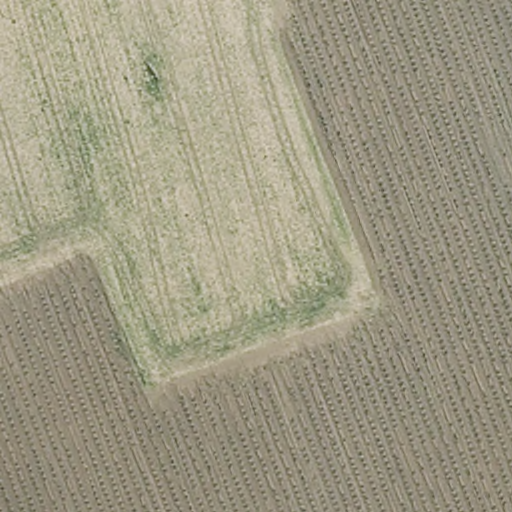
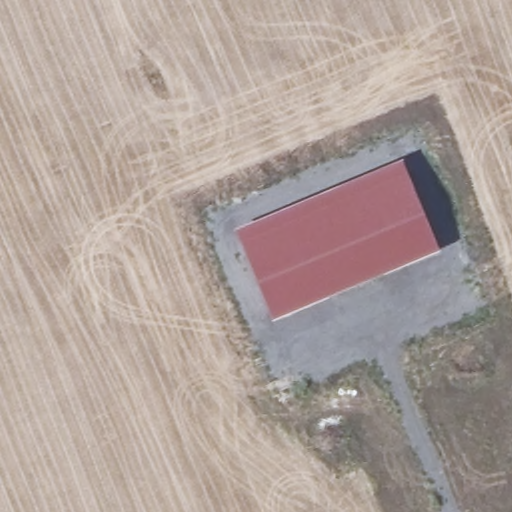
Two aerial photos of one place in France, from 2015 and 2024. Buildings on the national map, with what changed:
new [(439,249),(271,320),(235,228),(402,158),(439,249)]

